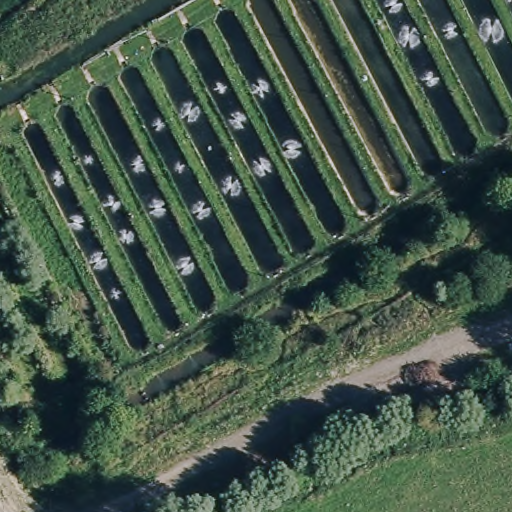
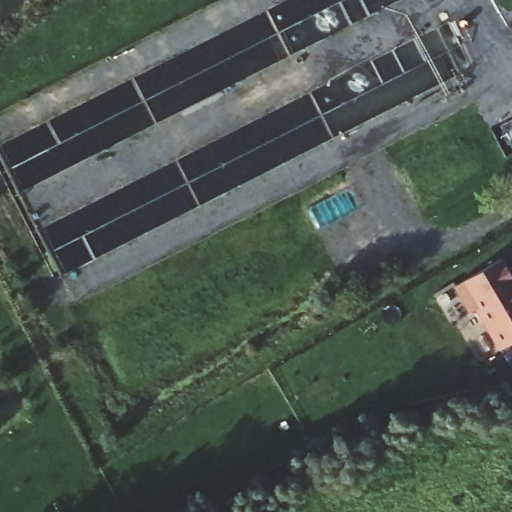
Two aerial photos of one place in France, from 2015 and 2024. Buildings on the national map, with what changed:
new [(477,309),(468,313),(453,287),(501,259),(512,282),(512,342),(499,350),(477,309)]

